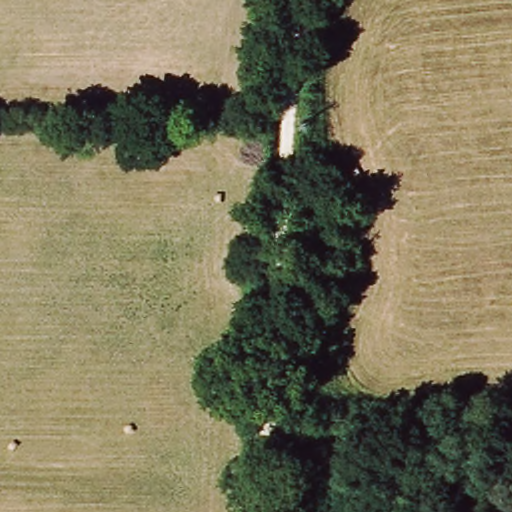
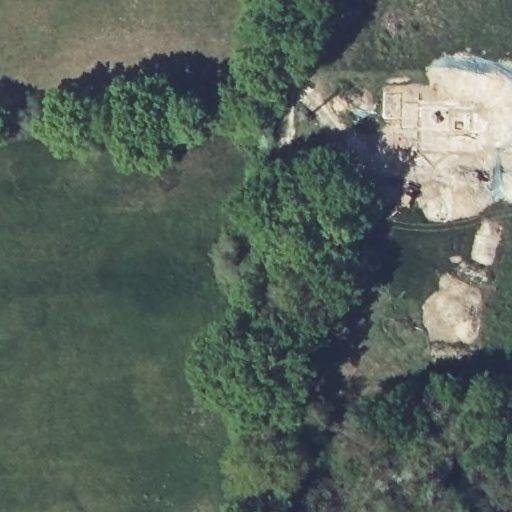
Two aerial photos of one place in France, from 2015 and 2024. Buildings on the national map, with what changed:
[]

